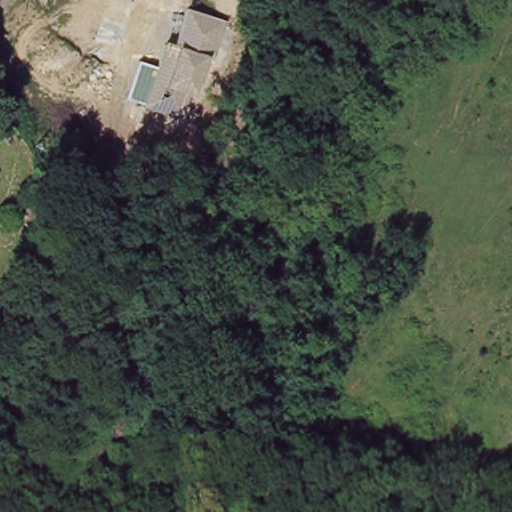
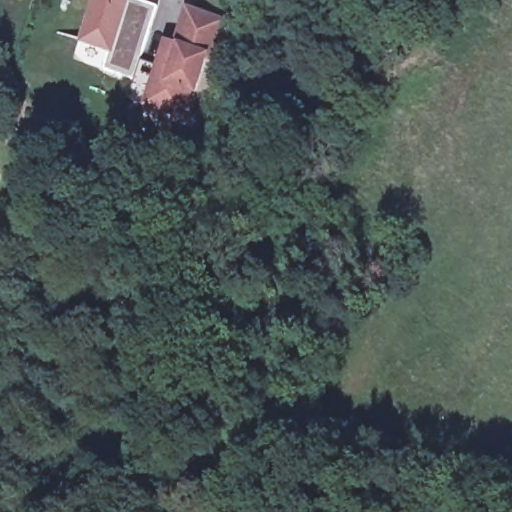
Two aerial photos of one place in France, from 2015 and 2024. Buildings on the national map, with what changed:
new [(79,37),(92,0),(146,0),(153,2),(146,26),(136,55),(131,75),(117,70),(100,65),(106,46),(79,37)]
unchanged [(136,55),(156,62),(163,40),(169,41),(173,42),(186,4),(220,15),(207,55),(201,54),(191,87),(186,86),(178,112),(124,94),(131,75),(136,55)]

